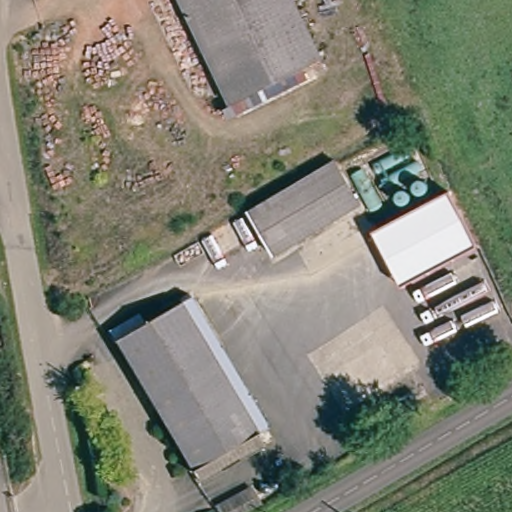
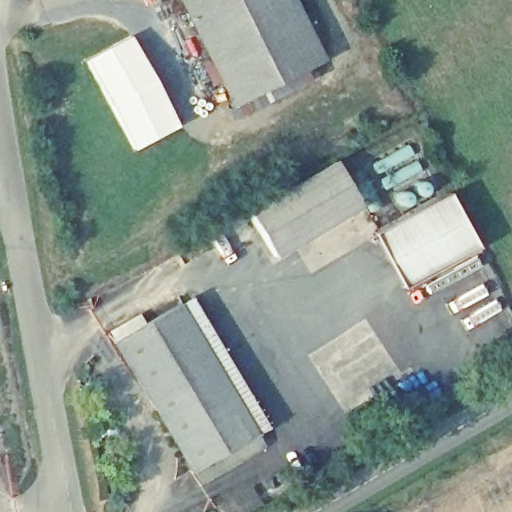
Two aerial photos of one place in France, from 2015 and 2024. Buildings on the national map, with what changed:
unchanged [(326,54),(236,100),(184,0),(298,0),(326,54)]
new [(130,34),(179,126),(131,151),(82,60),(130,34)]
unchanged [(278,258),(265,235),(255,219),(252,214),(339,162),(365,207),(278,258)]
unchanged [(462,229),(402,259),(389,232),(450,203),(462,229)]
unchanged [(263,432),(194,467),(126,337),(195,301),(263,432)]
unchanged [(401,405),(378,417),(371,405),(393,392),(401,405)]

